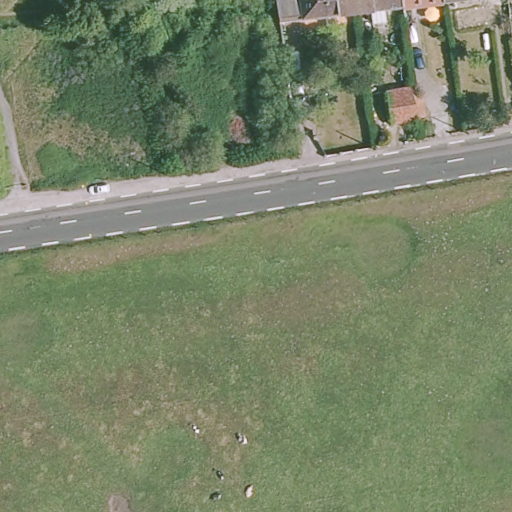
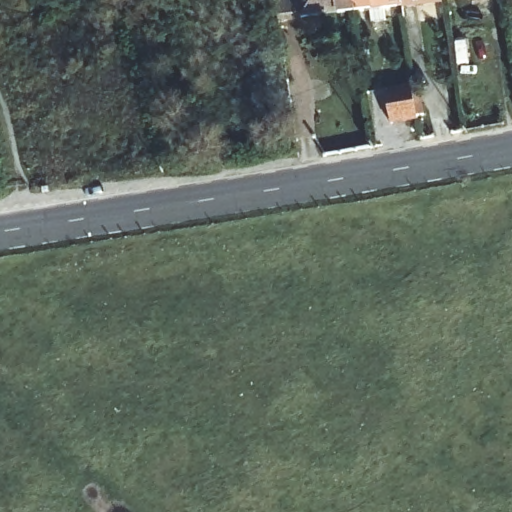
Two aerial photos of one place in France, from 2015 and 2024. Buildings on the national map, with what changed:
unchanged [(280,21),(276,0),(355,0),(356,12),(280,21)]
unchanged [(370,10),(356,12),(355,0),(402,0),(403,6),(385,9),(386,21),(372,23),(370,10)]
unchanged [(403,6),(402,0),(443,0),(443,1),(443,3),(403,6)]
unchanged [(443,0),(451,0),(443,1),(443,0)]
unchanged [(424,116),(417,117),(417,119),(391,124),(385,91),(412,86),(413,94),(414,96),(420,95),(424,116)]

